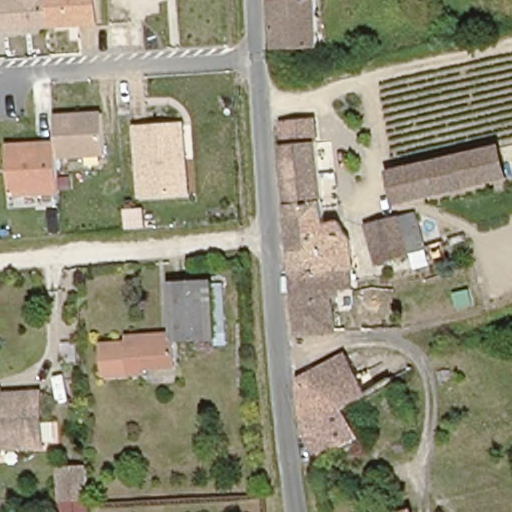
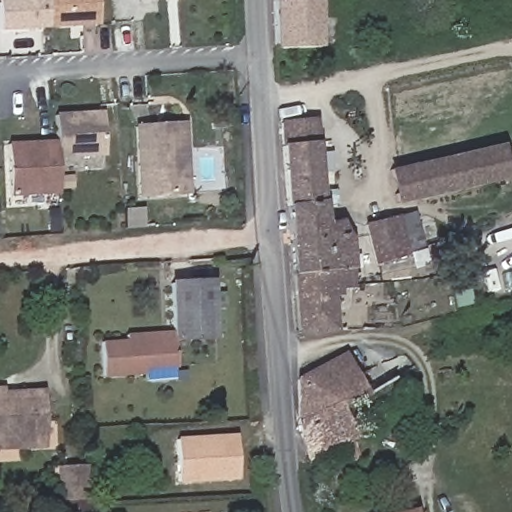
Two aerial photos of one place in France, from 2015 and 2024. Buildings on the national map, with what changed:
unchanged [(100,25),(2,33),(0,0),(98,0),(100,25)]
unchanged [(275,0),(317,0),(319,45),(276,46),(275,0)]
unchanged [(57,160),(59,196),(10,196),(8,142),(57,139),(57,114),(102,112),(105,156),(57,160)]
unchanged [(135,126),(186,123),(190,195),(139,196),(135,126)]
unchanged [(333,227),(351,244),(354,290),(331,291),(334,331),(300,336),(285,149),(282,128),(301,127),(302,148),(315,147),(322,228),(333,227)]
unchanged [(496,146),(505,175),(400,207),(392,179),(496,146)]
unchanged [(401,211),(412,207),(426,245),(400,255),(401,258),(392,262),(382,266),(366,224),(401,211)]
unchanged [(210,341),(175,341),(175,369),(140,369),(140,376),(101,376),(100,342),(123,342),(123,333),(170,331),(170,286),(209,284),(210,341)]
unchanged [(300,377),(345,354),(369,391),(324,413),(330,434),(299,438),(300,377)]
unchanged [(42,393),(42,407),(45,443),(20,445),(0,445),(0,395),(26,393),(42,393)]
new [(177,485),(175,437),(236,433),(240,481),(177,485)]
unchanged [(63,462),(90,462),(91,497),(63,496),(63,462)]
unchanged [(408,512),(412,511),(412,512),(408,512)]

